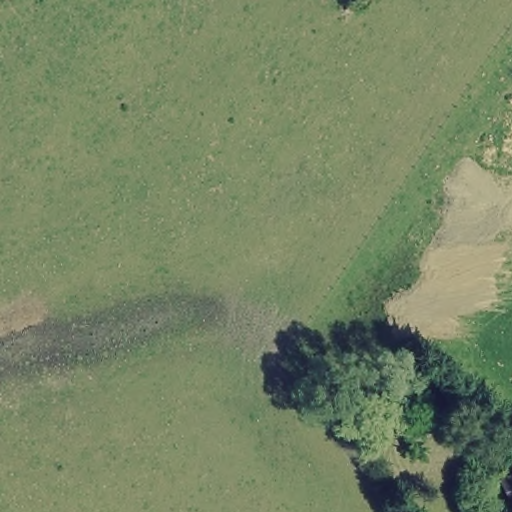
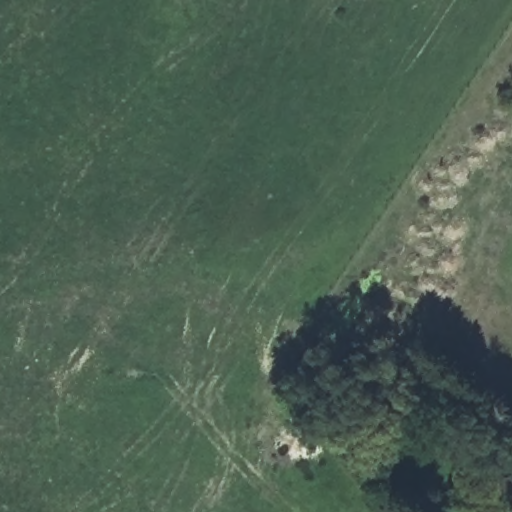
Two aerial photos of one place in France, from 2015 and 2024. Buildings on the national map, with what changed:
unchanged [(512,508),(499,512),(485,477),(512,469),(512,508)]

